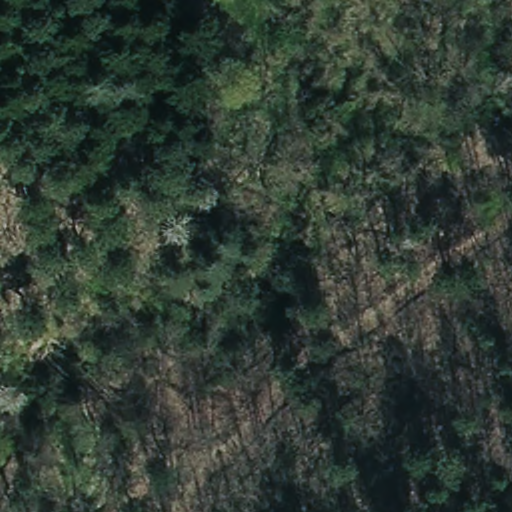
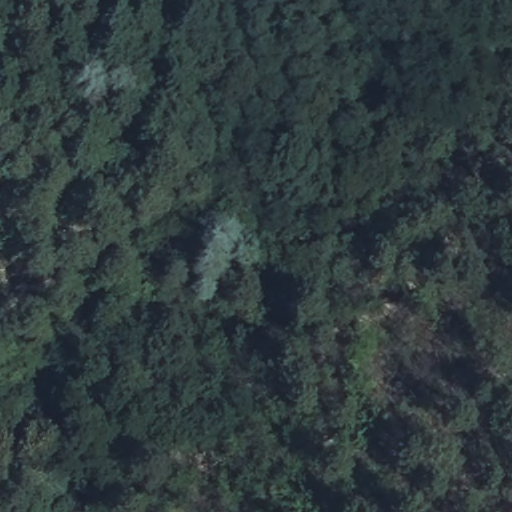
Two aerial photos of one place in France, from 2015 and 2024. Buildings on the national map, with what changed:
unchanged [(213,19),(195,15),(198,0),(216,0),(213,19)]

